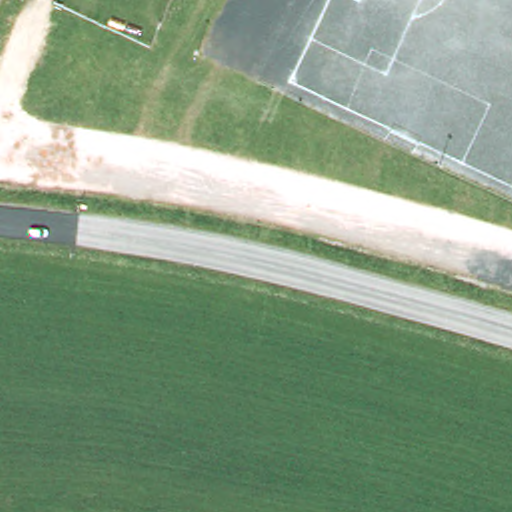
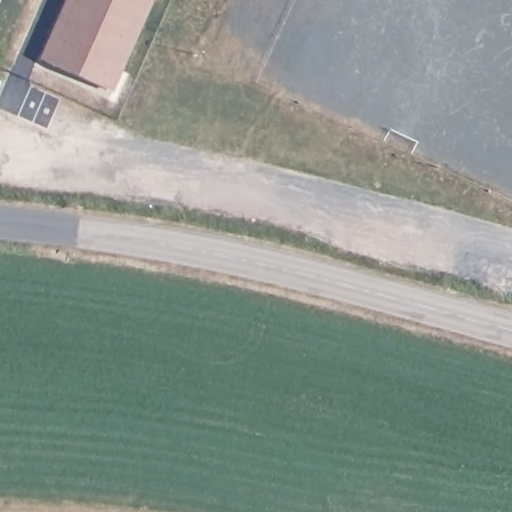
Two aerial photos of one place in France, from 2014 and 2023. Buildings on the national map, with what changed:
new [(38,59),(65,0),(153,0),(112,92),(38,59)]

